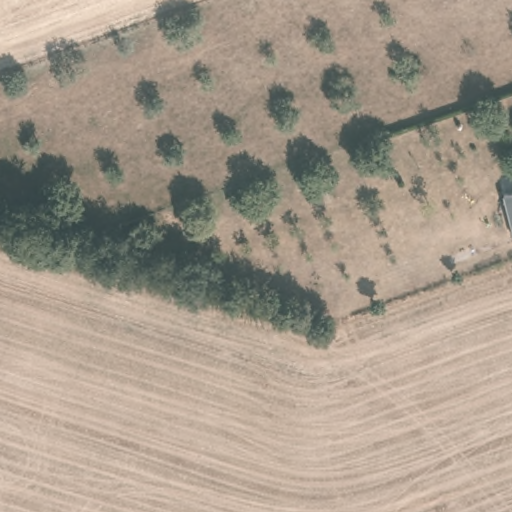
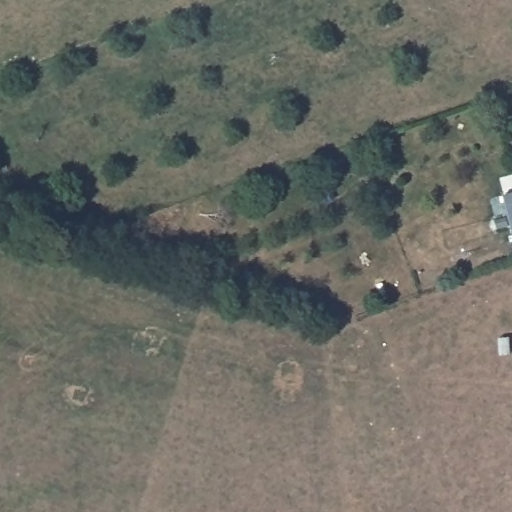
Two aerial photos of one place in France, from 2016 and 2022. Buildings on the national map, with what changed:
unchanged [(512,192),(512,232),(504,194),(512,192)]

